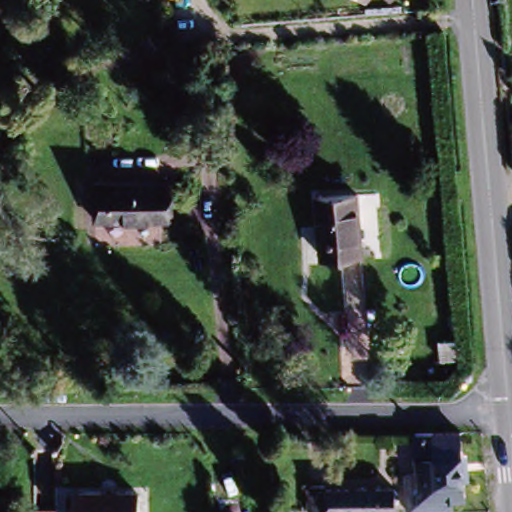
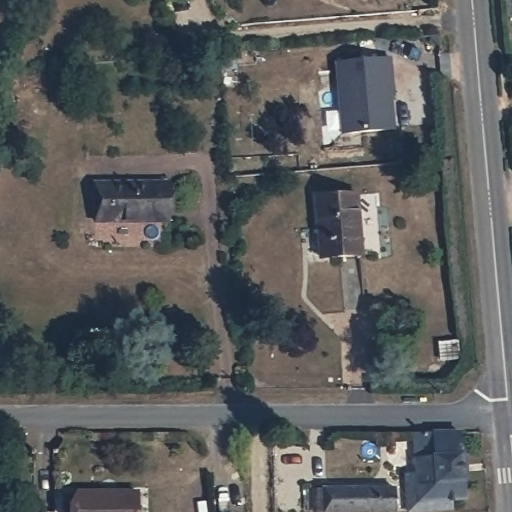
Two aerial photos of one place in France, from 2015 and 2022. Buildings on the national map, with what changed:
new [(393,57),(394,77),(392,77),(395,128),(342,131),(338,60),(393,57)]
unchanged [(118,184),(171,182),(172,222),(116,224),(96,225),(97,185),(118,184)]
unchanged [(312,201),(349,200),(349,260),(312,260),(312,201)]
unchanged [(414,478),(412,440),(458,439),(458,497),(445,499),(445,512),(401,512),(400,479),(414,478)]
unchanged [(387,488),(387,512),(310,512),(311,488),(387,488)]
unchanged [(128,495),(128,512),(71,512),(71,495),(128,495)]

